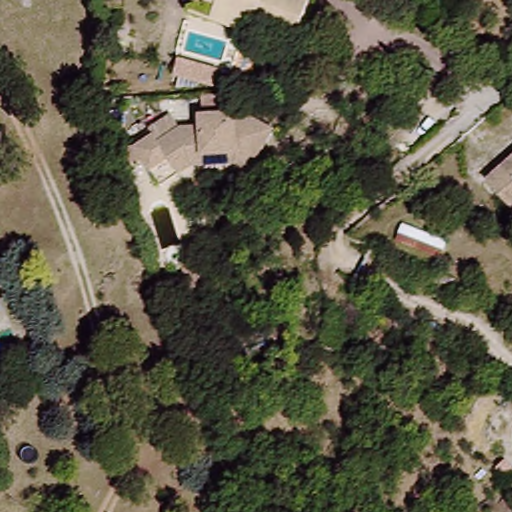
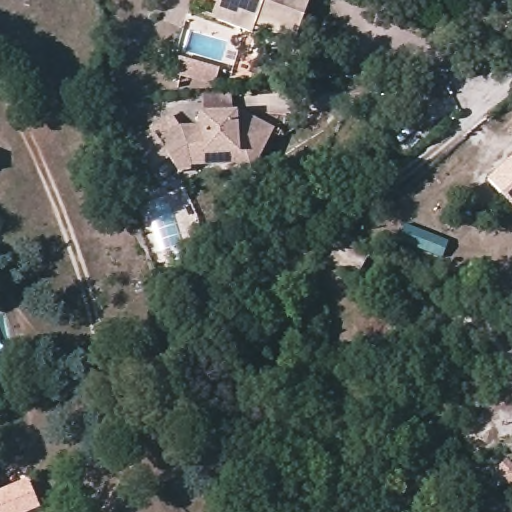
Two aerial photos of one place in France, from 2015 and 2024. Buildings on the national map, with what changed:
unchanged [(252,30),(189,5),(191,0),(227,0),(259,14),(257,20),(252,30)]
unchanged [(292,34),(257,20),(259,14),(227,0),(307,0),(292,34)]
unchanged [(222,70),(216,88),(172,78),(178,57),(222,70)]
unchanged [(189,172),(177,180),(172,172),(166,165),(149,173),(143,162),(141,160),(129,168),(123,160),(133,152),(135,154),(150,143),(148,138),(169,124),(178,136),(199,135),(199,123),(237,119),(271,134),(255,166),(250,175),(238,169),(189,172)]
unchanged [(502,200),(487,184),(512,161),(512,210),(502,200)]
unchanged [(448,256),(405,238),(411,222),(456,239),(448,256)]
unchanged [(213,280),(195,289),(185,264),(202,257),(213,280)]
new [(41,508),(32,512),(0,512),(0,487),(27,476),(41,508)]

